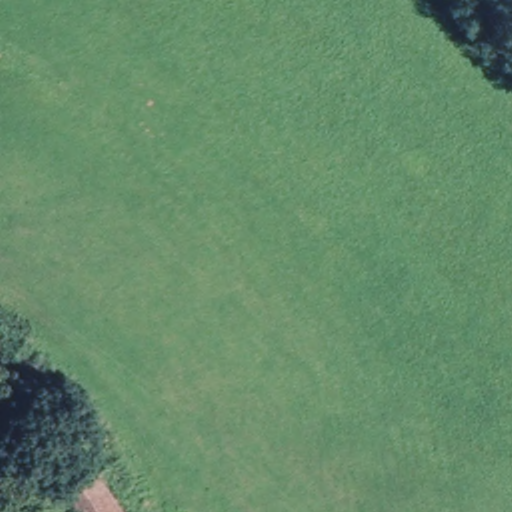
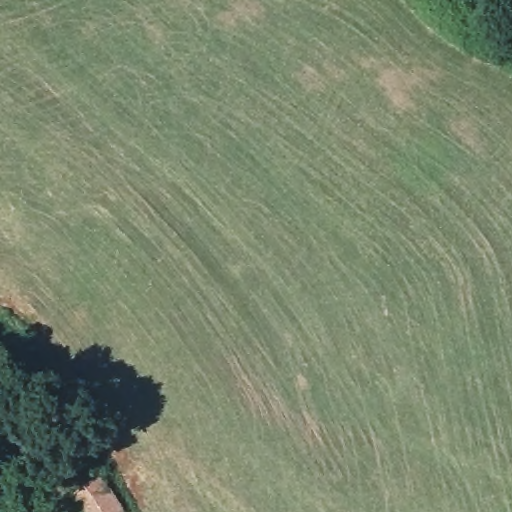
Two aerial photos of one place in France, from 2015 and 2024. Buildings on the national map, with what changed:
unchanged [(81,512),(72,494),(87,486),(100,478),(119,512),(81,512)]

